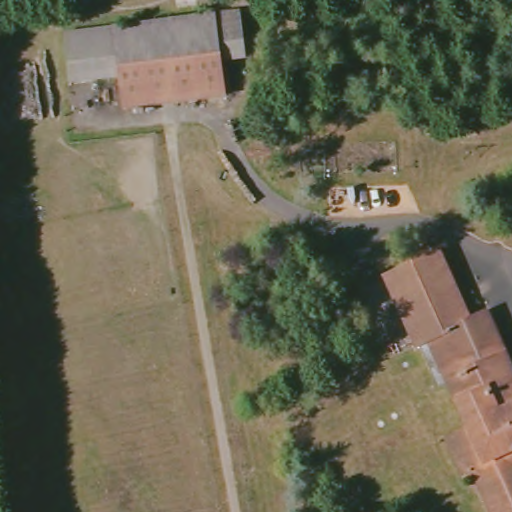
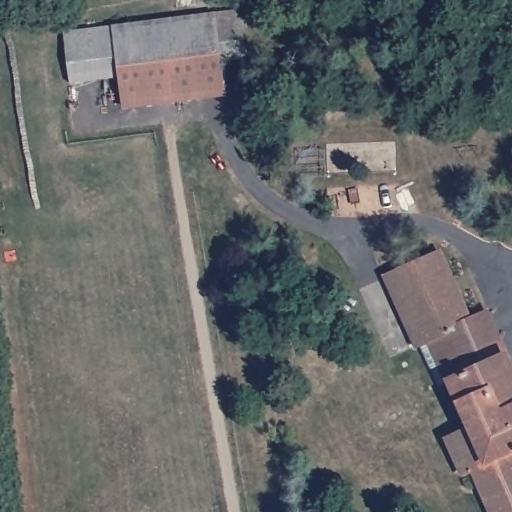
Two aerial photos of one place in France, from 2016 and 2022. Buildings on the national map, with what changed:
unchanged [(237,12),(242,52),(219,55),(214,56),(210,15),(237,12)]
unchanged [(215,64),(115,76),(64,82),(59,32),(210,15),(214,56),(215,64)]
unchanged [(215,64),(218,95),(117,107),(115,76),(215,64)]
unchanged [(465,312),(477,307),(512,396),(512,512),(478,512),(460,468),(446,473),(431,435),(450,425),(430,374),(420,378),(388,298),(377,266),(435,242),(465,312)]

